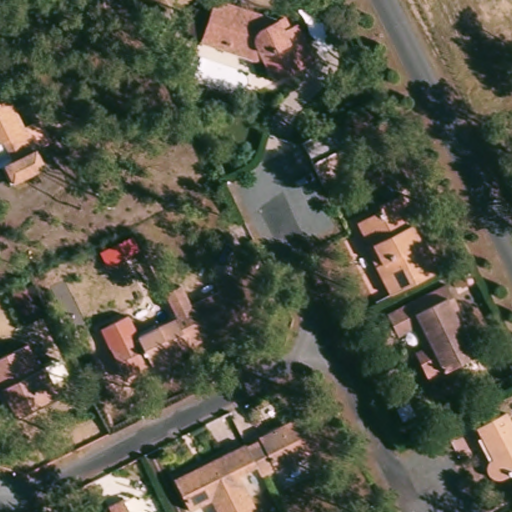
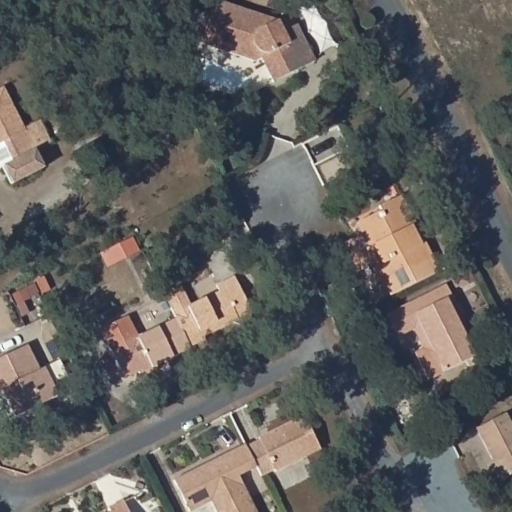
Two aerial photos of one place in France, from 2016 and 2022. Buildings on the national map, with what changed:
unchanged [(229,49),(206,41),(220,0),(231,0),(283,18),(290,15),(297,28),(302,25),(320,58),(278,80),(265,56),(258,60),(229,49)]
unchanged [(214,11),(206,35),(194,32),(202,7),(214,11)]
unchanged [(2,87),(42,167),(9,182),(1,166),(11,161),(2,143),(0,144),(0,88),(2,87)]
unchanged [(400,194),(415,223),(424,241),(431,256),(382,281),(375,265),(378,263),(357,220),(381,208),(378,204),(400,194)]
unchanged [(178,285),(188,304),(218,289),(214,281),(234,271),(250,303),(250,308),(248,313),(245,316),(241,318),(237,318),(235,318),(202,334),(203,337),(188,344),(175,316),(163,292),(178,285)]
unchanged [(390,332),(381,313),(442,283),(452,304),(445,308),(470,354),(437,371),(422,378),(408,351),(418,347),(407,324),(390,332)]
unchanged [(114,363),(107,347),(98,329),(127,315),(136,332),(137,336),(175,316),(188,344),(189,346),(154,364),(151,369),(148,372),(144,373),(140,373),(135,371),(122,378),(114,363)]
unchanged [(26,343),(38,369),(43,366),(57,394),(14,416),(0,389),(0,356),(26,343)]
unchanged [(255,439),(253,435),(297,413),(314,448),(270,470),(269,467),(255,474),(250,465),(240,445),(255,439)]
unchanged [(512,428),(512,474),(500,480),(494,479),(489,477),(485,474),(484,468),(486,463),(490,459),(475,428),(504,414),(512,428)]
unchanged [(250,465),(235,473),(254,512),(214,512),(207,498),(185,509),(169,478),(239,442),(240,445),(250,465)]
unchanged [(122,504),(126,512),(109,512),(108,511),(122,504)]

